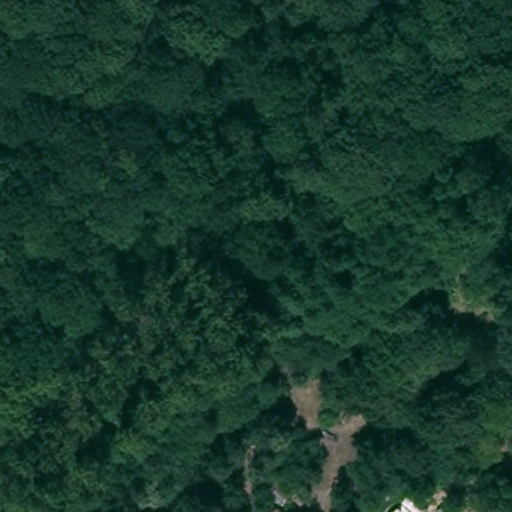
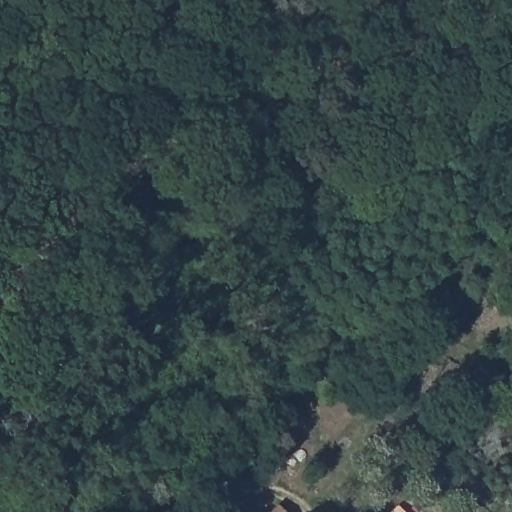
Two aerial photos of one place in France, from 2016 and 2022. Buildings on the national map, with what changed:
unchanged [(317,508),(313,512),(275,512),(300,490),(317,508)]

